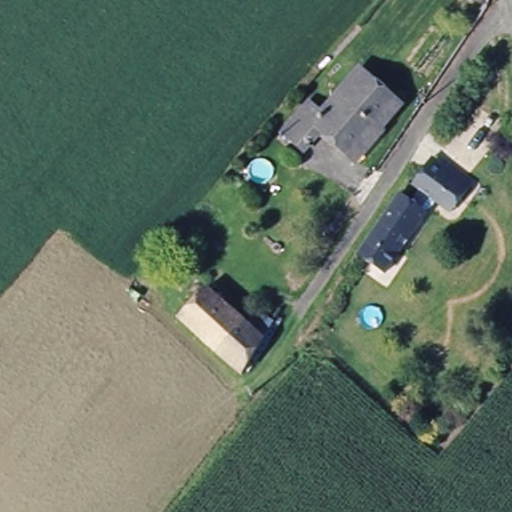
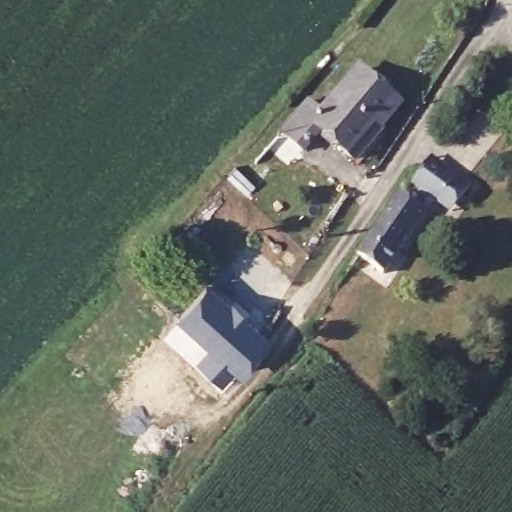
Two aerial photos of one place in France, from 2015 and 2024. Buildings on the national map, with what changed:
unchanged [(361,157),(342,177),(308,148),(291,165),(269,145),(294,112),(309,125),(349,81),(384,111),(394,119),(361,157)]
unchanged [(409,205),(417,194),(413,189),(421,177),(429,165),(445,175),(468,191),(459,205),(449,217),(432,206),(383,276),(357,260),(397,197),(409,205)]
unchanged [(237,370),(175,313),(204,283),(265,336),(237,370)]

